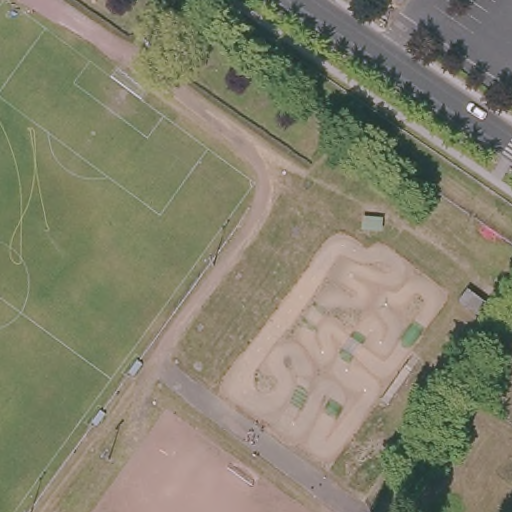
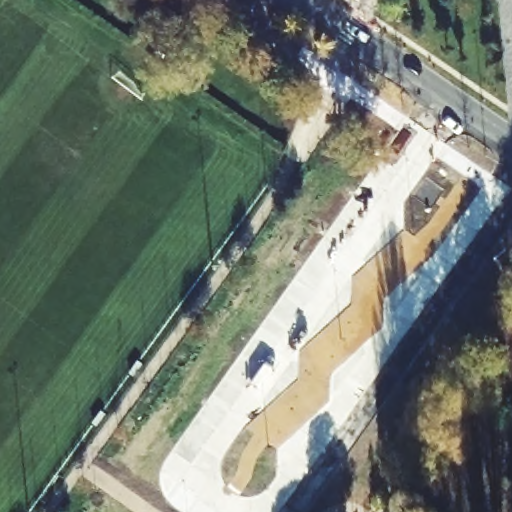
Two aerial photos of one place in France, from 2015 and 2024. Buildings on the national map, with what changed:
unchanged [(500,328),(490,342),(483,337),(492,323),(500,328)]

